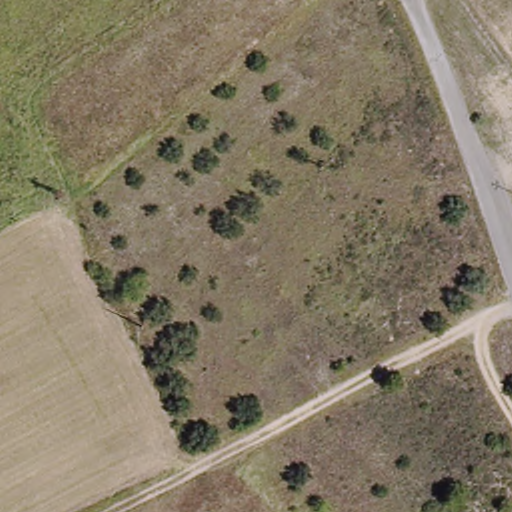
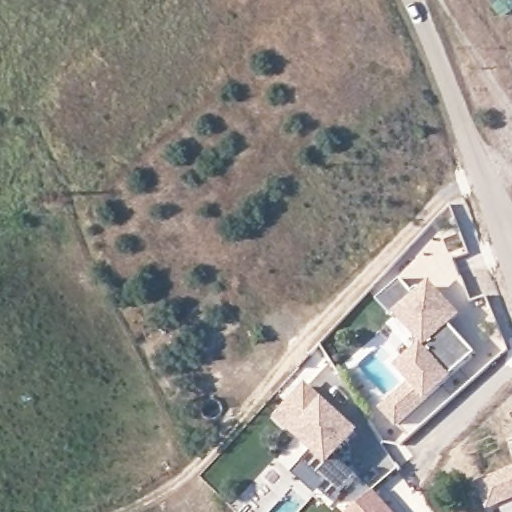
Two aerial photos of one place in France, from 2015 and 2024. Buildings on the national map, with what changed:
new [(386,411),(414,385),(400,370),(427,345),(385,300),(408,279),(422,293),(435,280),(467,314),(454,326),(480,353),(401,427),(386,411)]
new [(293,474),(313,451),(316,454),(291,432),(294,429),(280,417),(310,383),(325,396),(320,402),(356,434),(337,455),(359,474),(335,501),(324,491),(316,496),(293,474)]
new [(493,512),(491,512),(479,484),(512,470),(512,504),(493,512)]
new [(393,512),(348,512),(373,489),(393,512)]

